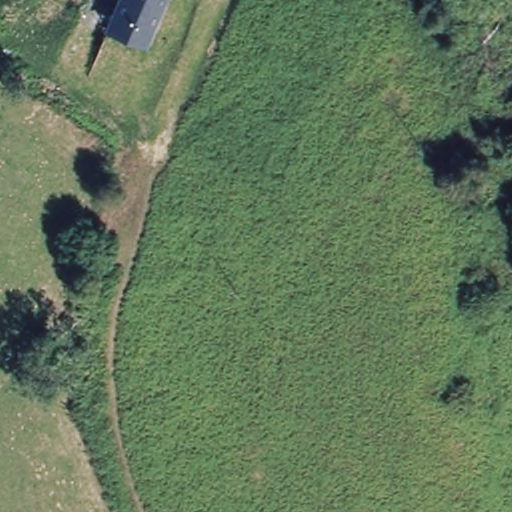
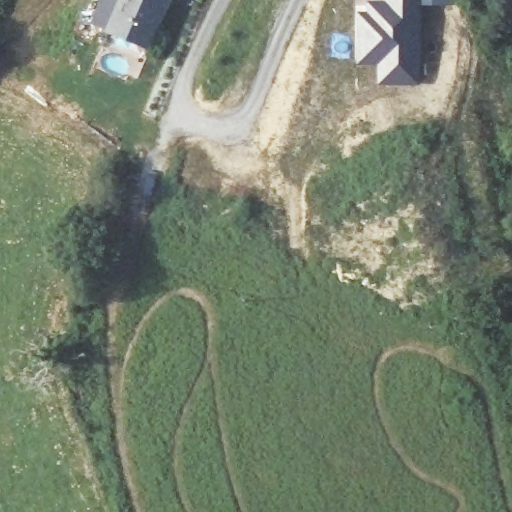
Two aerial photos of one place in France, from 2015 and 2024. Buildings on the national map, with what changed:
new [(121,0),(164,0),(145,44),(109,27),(121,0)]
new [(367,12),(368,0),(385,1),(386,0),(453,0),(454,5),(422,5),(420,84),(378,84),(378,64),(357,65),(358,11),(367,12)]

